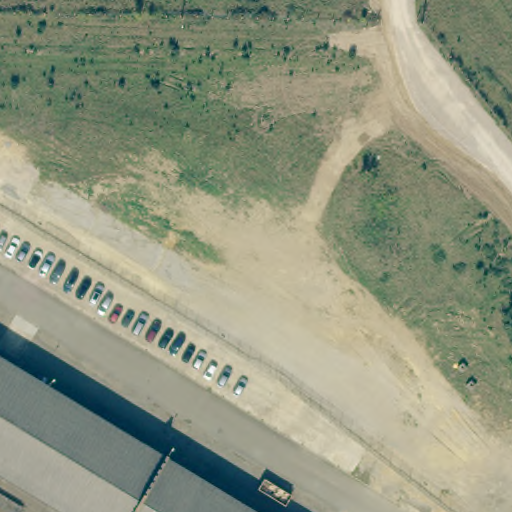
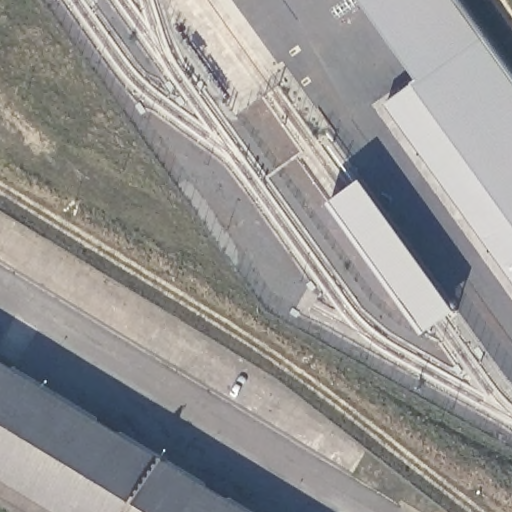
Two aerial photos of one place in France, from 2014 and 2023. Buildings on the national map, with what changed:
new [(388,105),(422,83),(363,0),(462,0),(512,70),(512,279),(388,105)]
new [(364,179),(460,312),(427,333),(332,203),(364,179)]
unchanged [(64,512),(0,473),(0,356),(256,512),(64,512)]
demolished [(476,430),(436,495),(411,480),(450,415),(476,430)]

